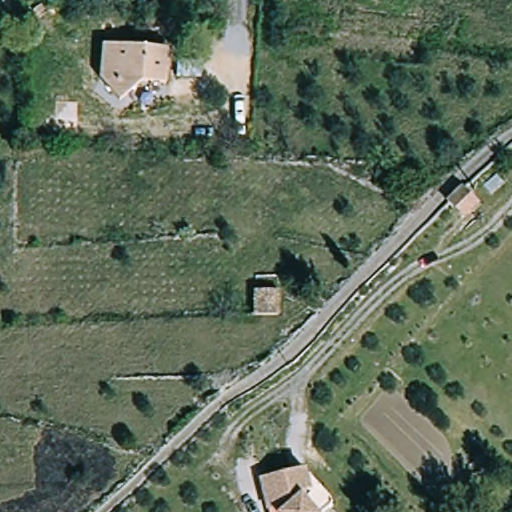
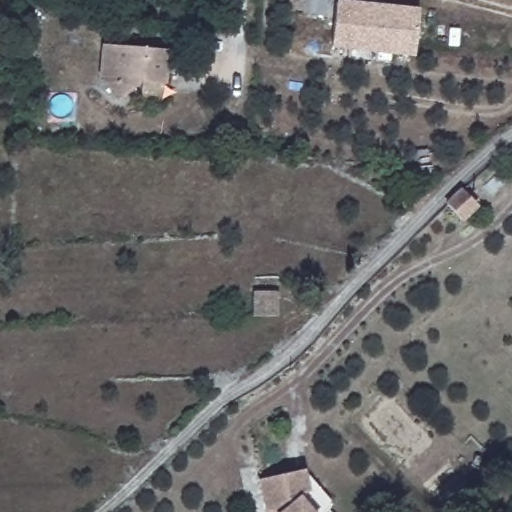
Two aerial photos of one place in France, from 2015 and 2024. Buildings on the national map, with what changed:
new [(363,4),(365,2),(420,9),(415,54),(331,46),(336,2),(363,4)]
unchanged [(100,69),(104,44),(145,49),(169,52),(166,80),(141,77),(117,93),(100,69)]
unchanged [(463,192),(475,204),(476,207),(461,221),(447,209),(445,206),(461,191),(463,192)]
unchanged [(280,317),(255,317),(254,295),(280,297),(280,317)]
unchanged [(255,480),(307,468),(335,502),(323,512),(270,512),(260,500),(255,480)]

